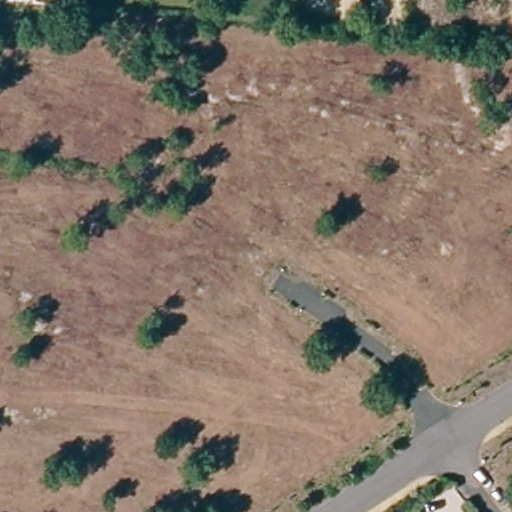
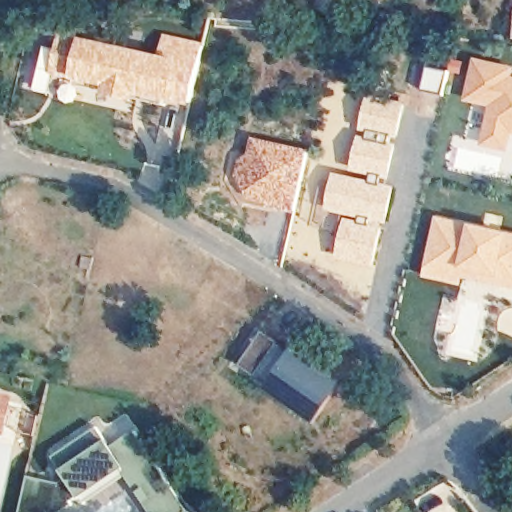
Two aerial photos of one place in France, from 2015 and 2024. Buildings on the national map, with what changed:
new [(80,36),(157,53),(163,32),(206,43),(190,107),(117,96),(67,80),(80,36)]
new [(482,146),(490,107),(466,101),(475,58),(512,66),(512,143),(509,154),(482,146)]
new [(340,258),(348,222),(359,224),(361,216),(331,210),(337,177),(372,184),(374,173),(354,168),(371,98),(404,105),(389,174),(383,173),(380,185),(393,188),(385,221),(373,217),(371,225),(381,228),(373,264),(340,258)]
new [(239,171),(250,136),(310,150),(294,213),(236,197),(239,171)]
new [(146,162),(171,171),(162,192),(138,183),(146,162)]
new [(512,284),(430,266),(441,220),(512,237),(512,284)]
new [(269,385),(240,366),(264,331),(290,351),(291,348),(342,383),(317,422),(266,388),(269,385)]
new [(15,396),(7,436),(0,434),(0,393),(15,396)]
new [(139,501),(138,498),(124,478),(79,501),(59,468),(53,459),(97,425),(99,428),(125,412),(137,429),(192,512),(146,512),(142,506),(139,501)]
new [(61,482),(60,493),(62,493),(58,512),(18,512),(26,475),(61,482)]

